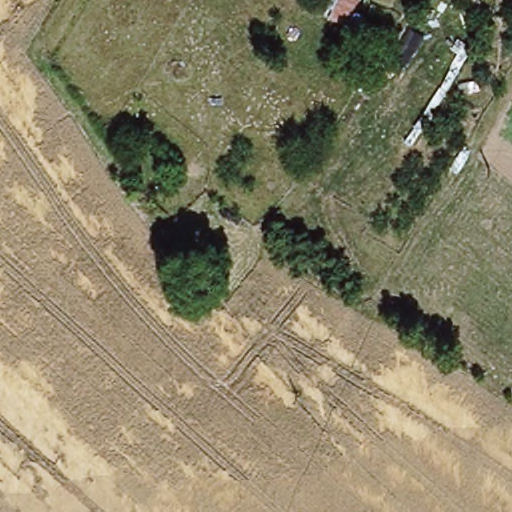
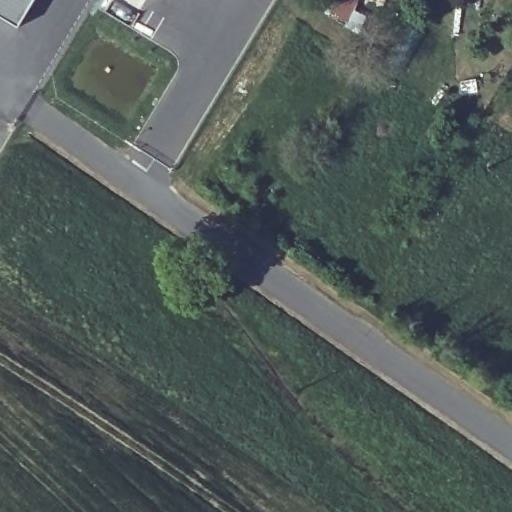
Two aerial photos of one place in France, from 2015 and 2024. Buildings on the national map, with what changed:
new [(0,23),(0,0),(33,0),(14,31),(0,23)]
unchanged [(366,16),(358,30),(323,14),(329,0),(356,0),(351,10),(366,16)]

